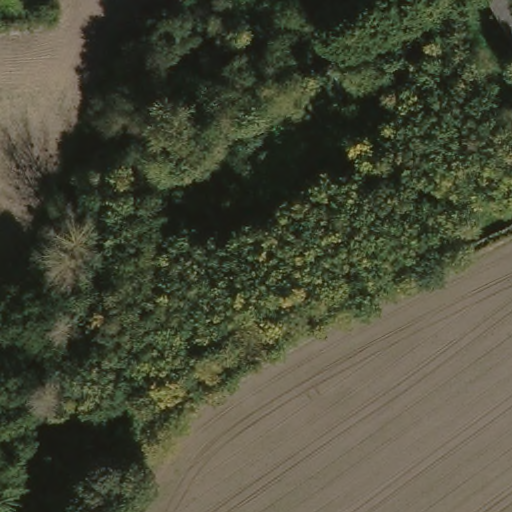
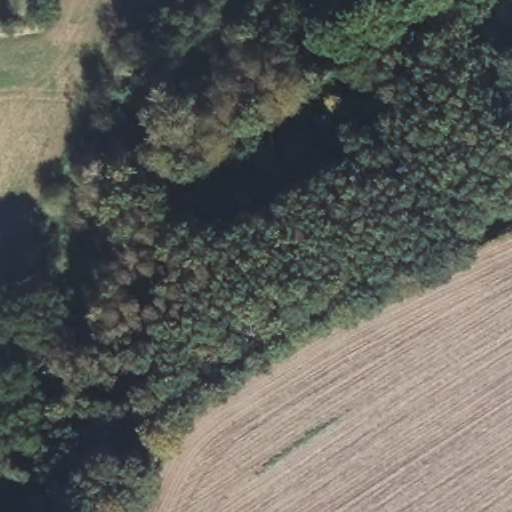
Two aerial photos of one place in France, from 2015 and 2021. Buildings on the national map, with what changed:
unchanged [(512,2),(512,52),(482,0),(511,0),(512,2)]
unchanged [(365,112),(324,135),(300,89),(344,65),(365,112)]

